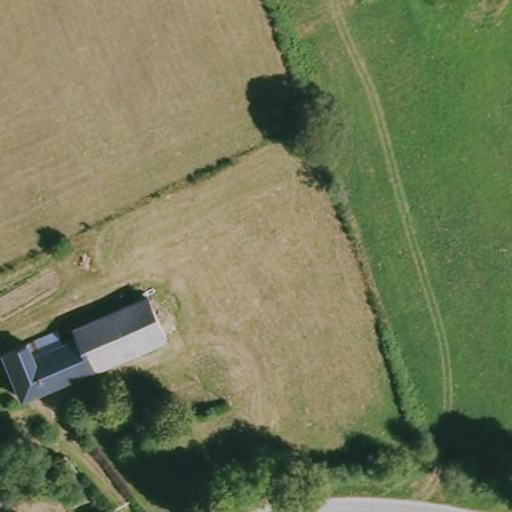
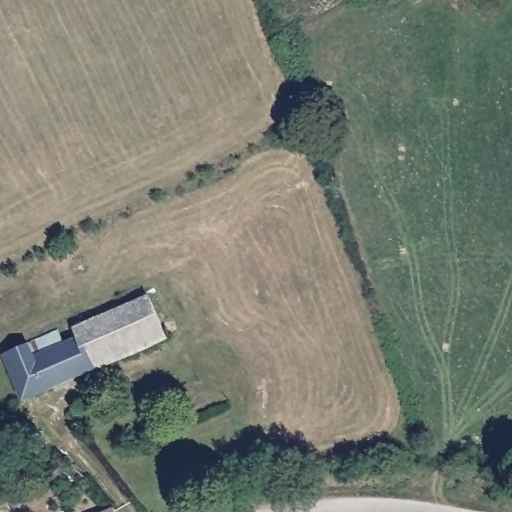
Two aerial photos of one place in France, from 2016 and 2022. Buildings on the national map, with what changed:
unchanged [(7,355),(34,342),(64,327),(71,341),(82,332),(79,326),(154,292),(171,335),(100,367),(95,362),(49,386),(29,399),(7,355)]
unchanged [(15,427),(0,431),(0,415),(12,412),(15,427)]

